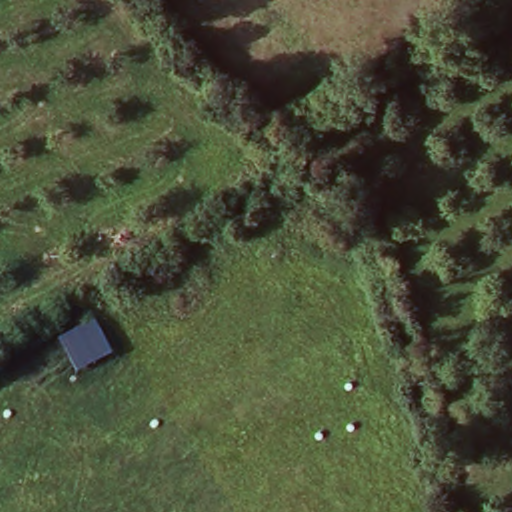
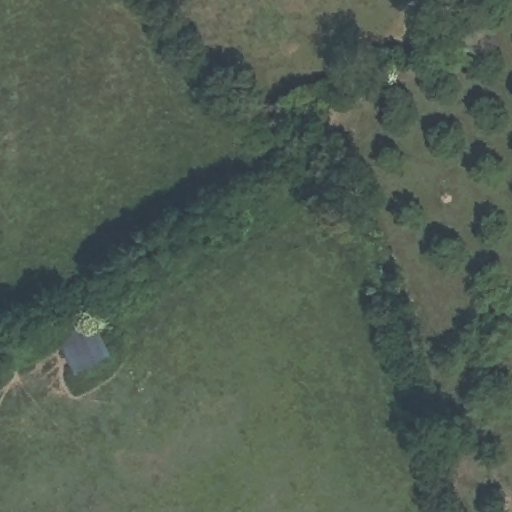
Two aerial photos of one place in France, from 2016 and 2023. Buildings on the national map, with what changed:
unchanged [(115,354),(79,373),(61,339),(98,319),(115,354)]

